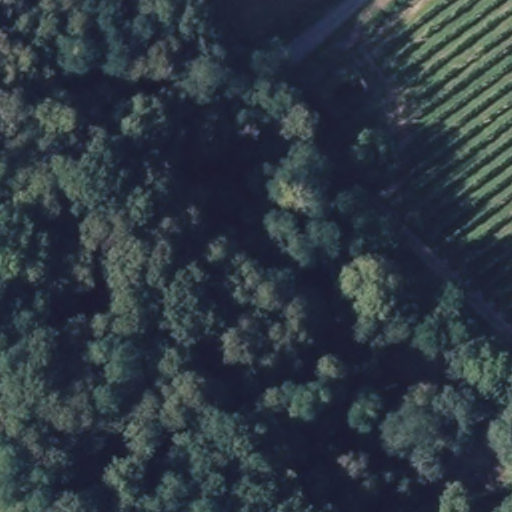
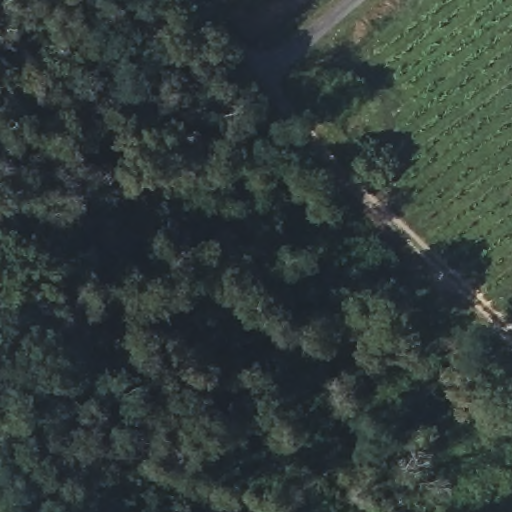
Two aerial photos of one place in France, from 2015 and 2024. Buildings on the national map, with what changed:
unchanged [(367,94),(332,127),(312,107),(347,74),(367,94)]

